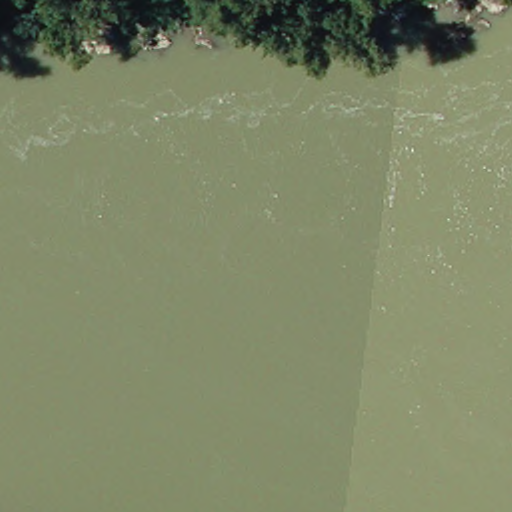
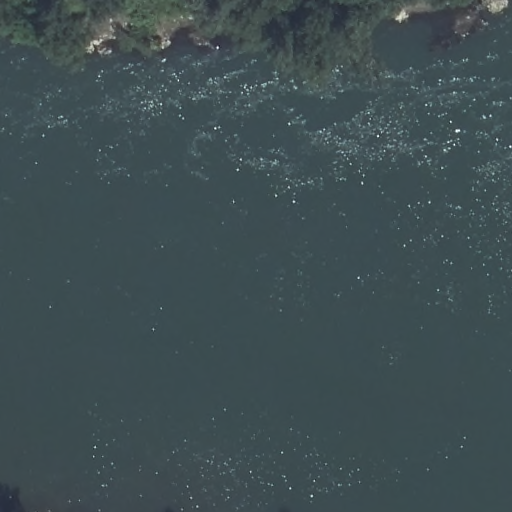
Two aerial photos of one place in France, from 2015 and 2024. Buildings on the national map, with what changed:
[]

